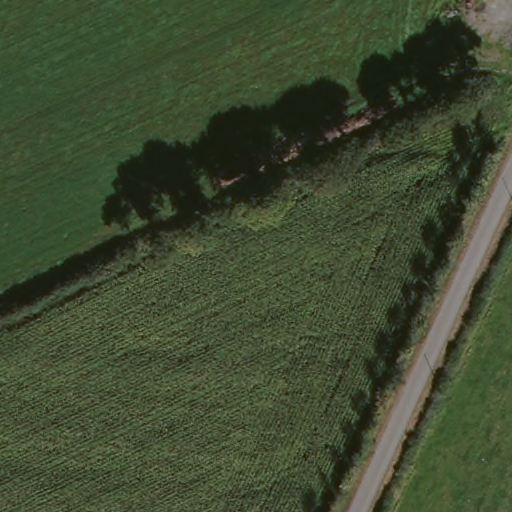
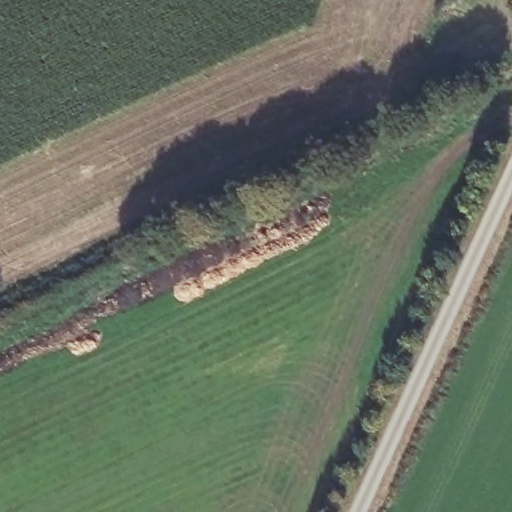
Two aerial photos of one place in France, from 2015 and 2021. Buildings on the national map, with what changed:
unchanged [(500,0),(512,0),(509,4),(500,0)]

